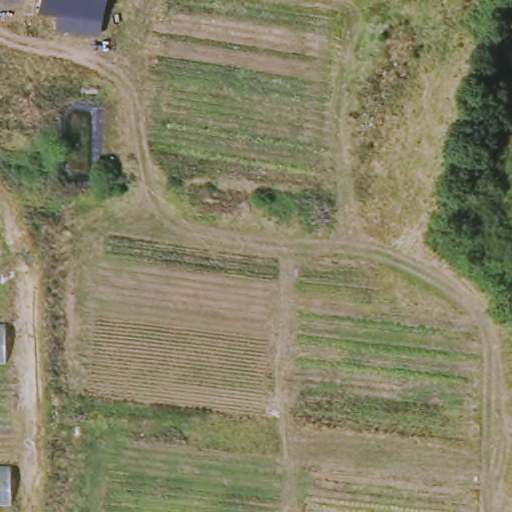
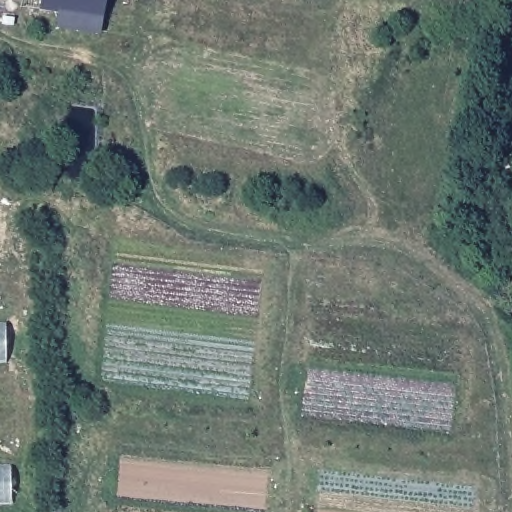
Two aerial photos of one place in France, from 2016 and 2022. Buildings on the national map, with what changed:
unchanged [(38,0),(103,0),(100,21),(99,36),(55,30),(57,16),(36,14),(38,0)]
unchanged [(7,362),(0,362),(0,328),(7,327),(7,362)]
unchanged [(11,503),(0,503),(0,472),(11,472),(11,503)]

